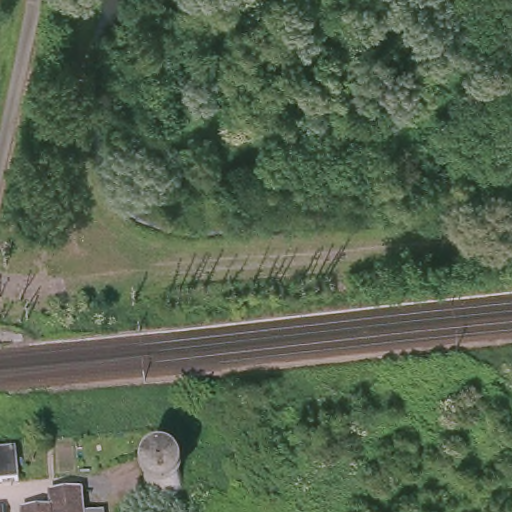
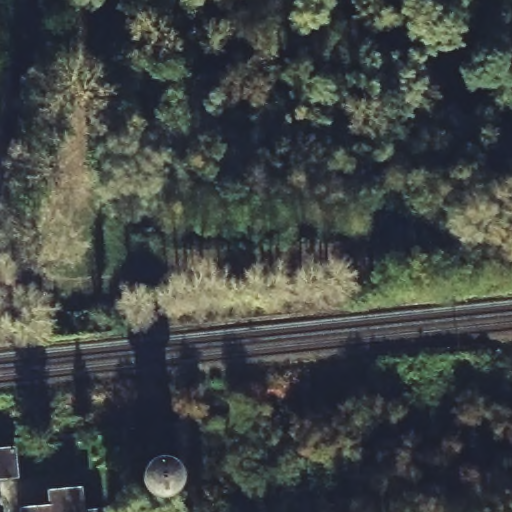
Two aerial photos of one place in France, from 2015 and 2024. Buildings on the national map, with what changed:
unchanged [(178,441),(165,442),(164,430),(176,429),(178,441)]
unchanged [(14,446),(17,475),(0,477),(0,447),(13,446),(14,446)]
unchanged [(85,506),(103,504),(104,512),(24,512),(23,504),(54,502),(53,487),(83,485),(85,506)]
unchanged [(4,499),(5,512),(0,512),(0,499),(4,499)]

